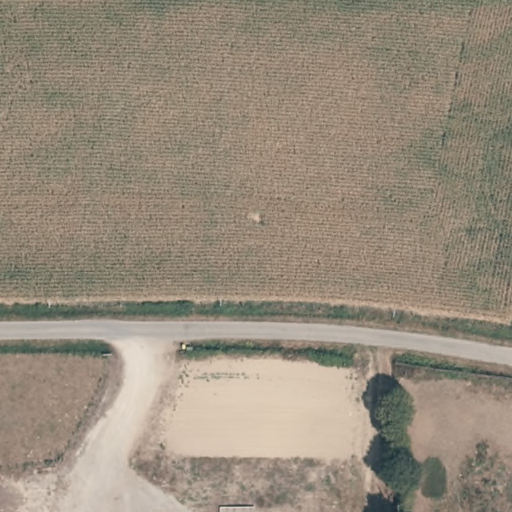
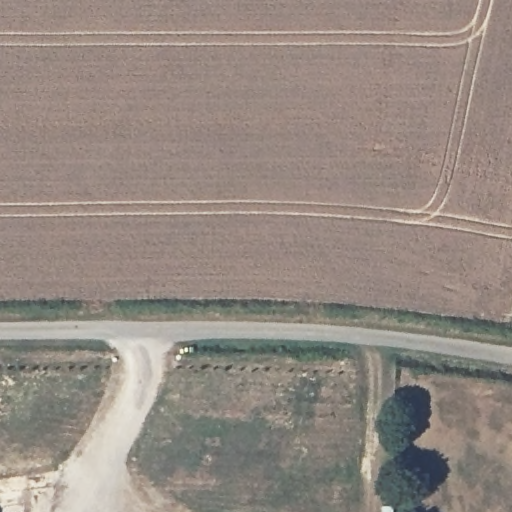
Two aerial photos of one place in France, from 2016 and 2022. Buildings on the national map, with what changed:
[]

